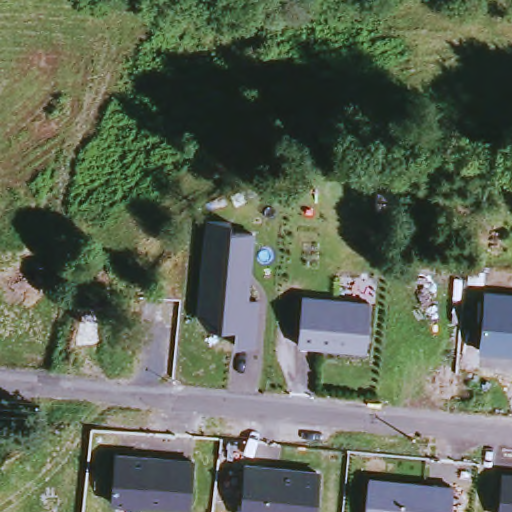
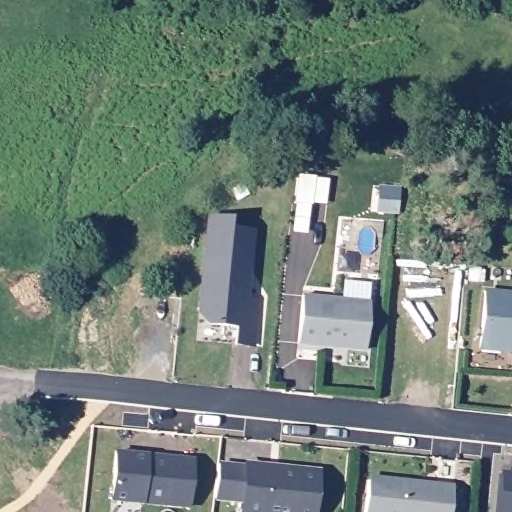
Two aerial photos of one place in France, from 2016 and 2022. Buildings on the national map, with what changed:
unchanged [(235,348),(235,331),(207,328),(198,316),(208,221),(232,219),(232,232),(256,233),(252,302),(260,302),(257,349),(235,348)]
unchanged [(512,291),(512,353),(478,350),(485,288),(512,291)]
unchanged [(297,346),(297,336),(301,298),(368,305),(364,352),(343,350),(316,347),(297,346)]
unchanged [(188,461),(185,508),(107,502),(110,455),(188,461)]
unchanged [(247,464),(322,472),(317,512),(243,512),(247,464)]
unchanged [(501,476),(512,477),(512,512),(497,512),(501,476)]
unchanged [(363,482),(428,488),(429,485),(448,487),(446,512),(360,512),(363,482)]

